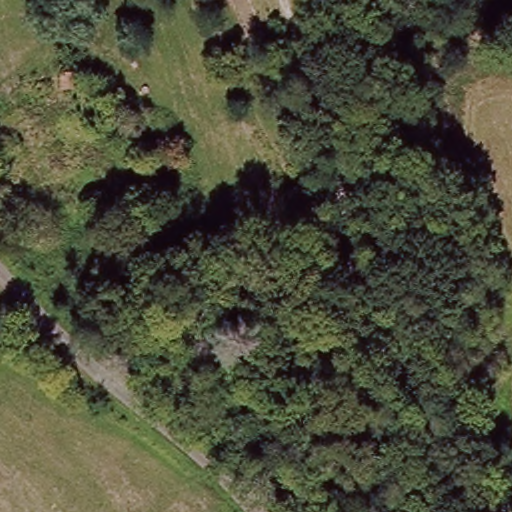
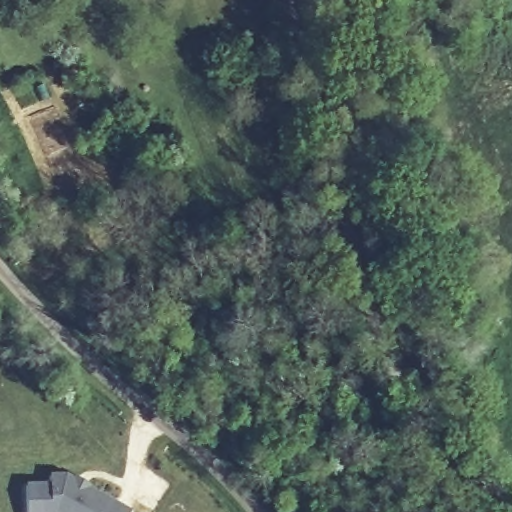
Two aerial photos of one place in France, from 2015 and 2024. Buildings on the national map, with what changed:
new [(49,477),(65,476),(73,479),(74,478),(91,487),(90,488),(131,510),(130,512),(26,512),(25,485),(50,484),(49,477)]

